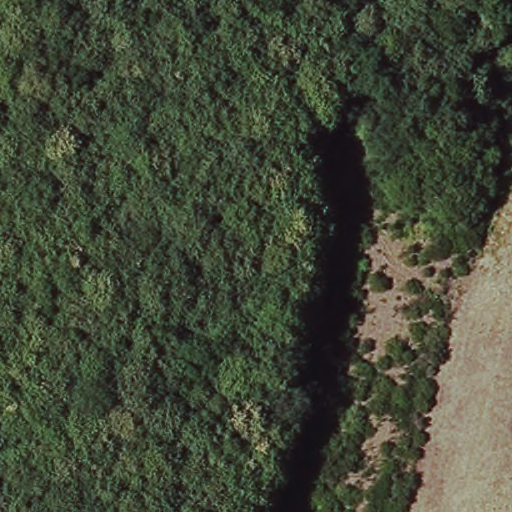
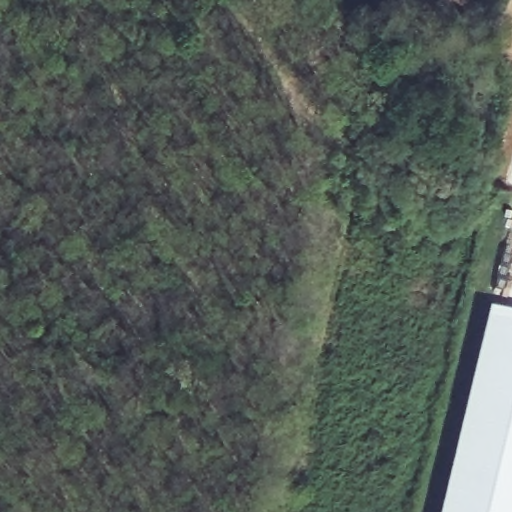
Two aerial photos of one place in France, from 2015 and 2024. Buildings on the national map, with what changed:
new [(485,312),(512,318),(512,512),(436,512),(485,312)]

